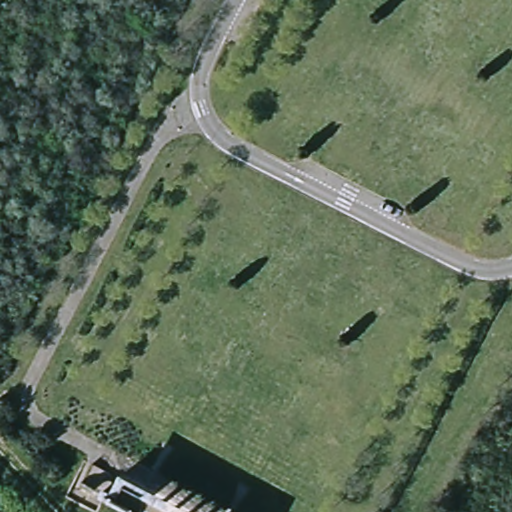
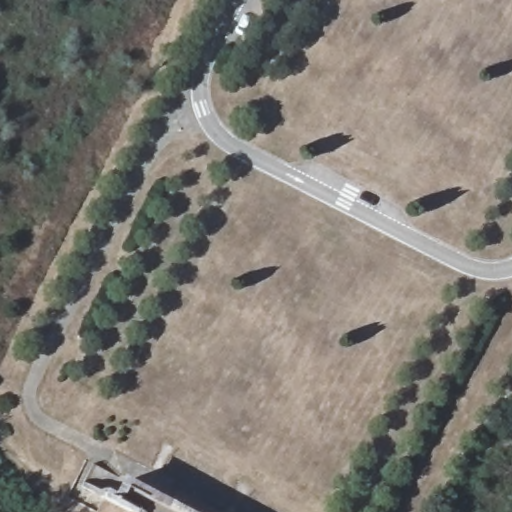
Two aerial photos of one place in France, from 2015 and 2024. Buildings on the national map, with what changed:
unchanged [(111,480),(175,512),(110,512),(99,506),(111,480)]

